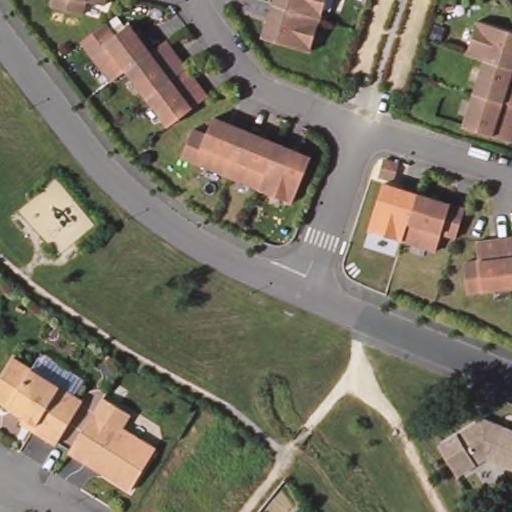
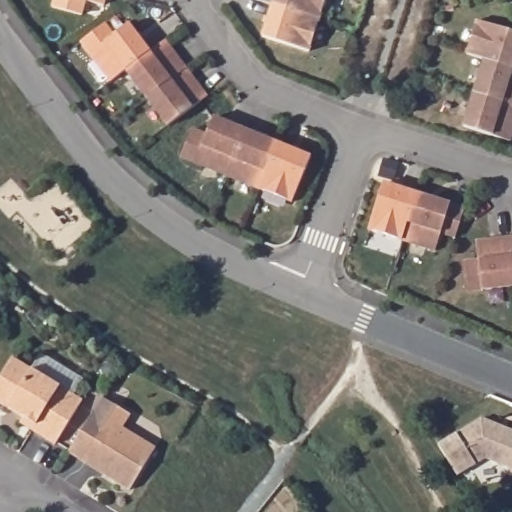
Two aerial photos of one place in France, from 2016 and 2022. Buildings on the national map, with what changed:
unchanged [(88,2),(82,18),(51,10),(54,0),(108,0),(106,6),(88,2)]
unchanged [(263,39),(275,0),(327,0),(312,54),(263,39)]
unchanged [(512,34),(512,144),(467,126),(485,64),(466,55),(478,22),(512,34)]
unchanged [(103,23),(114,38),(130,25),(153,53),(167,43),(209,100),(169,129),(125,73),(111,83),(80,41),(103,23)]
unchanged [(210,135),(215,118),(315,159),(297,205),(182,158),(192,131),(210,135)]
unchanged [(468,210),(456,241),(443,238),(438,255),(370,234),(387,185),(468,210)]
unchanged [(512,238),(512,292),(467,300),(463,263),(480,262),(477,243),(512,238)]
unchanged [(60,442),(0,403),(0,381),(14,359),(85,403),(60,442)]
unchanged [(134,489),(74,456),(104,399),(133,415),(125,431),(159,449),(134,489)]
unchanged [(512,427),(512,469),(486,460),(459,478),(438,443),(481,417),(512,427)]

